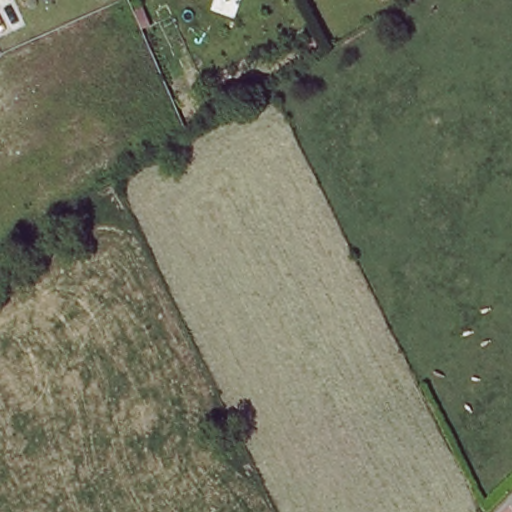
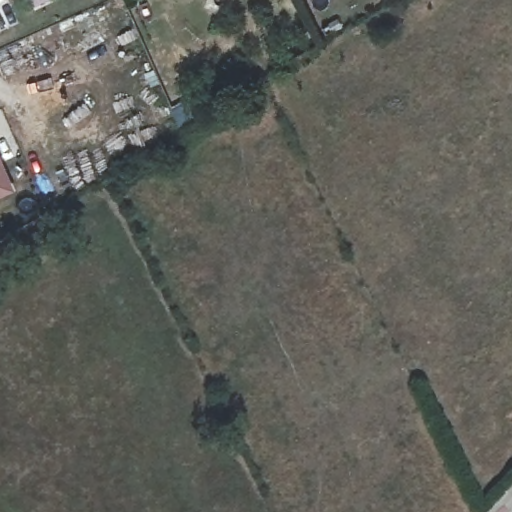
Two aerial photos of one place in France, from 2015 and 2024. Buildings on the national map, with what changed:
new [(15,191),(0,198),(0,157),(15,191)]

